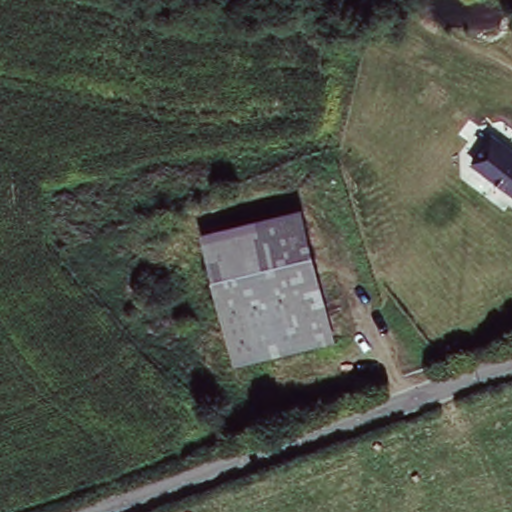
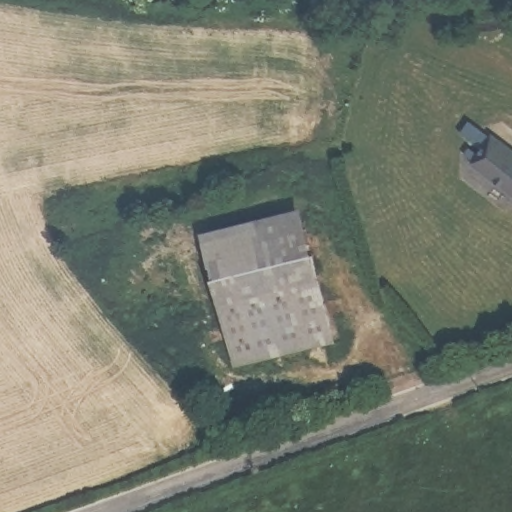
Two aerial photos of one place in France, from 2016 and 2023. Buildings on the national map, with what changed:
unchanged [(512,146),(512,188),(472,159),(492,131),(512,146)]
unchanged [(206,249),(202,232),(303,208),(306,224),(206,249)]
unchanged [(287,256),(293,279),(219,298),(206,249),(306,224),(313,250),(287,256)]
unchanged [(333,335),(235,359),(219,298),(293,279),(287,256),(313,250),(333,335)]

